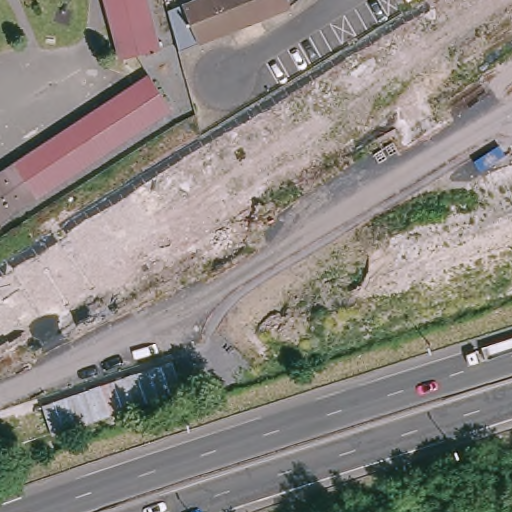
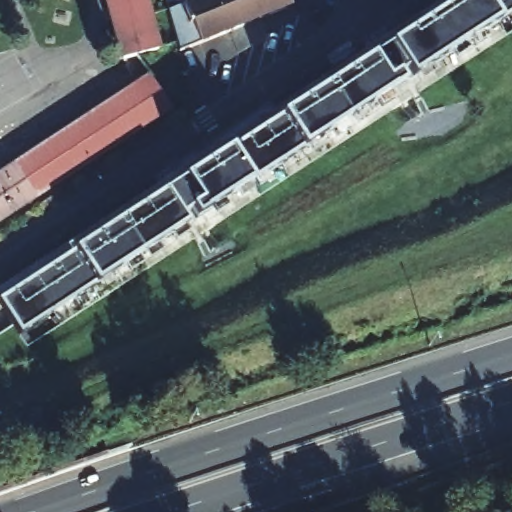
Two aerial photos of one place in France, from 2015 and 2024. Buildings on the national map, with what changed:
new [(25,341),(0,302),(0,289),(443,0),(512,0),(512,26),(25,341)]
unchanged [(121,54),(106,0),(142,0),(154,45),(121,54)]
unchanged [(217,0),(228,26),(208,34),(198,39),(177,47),(166,6),(181,0),(183,0),(217,0)]
unchanged [(217,0),(253,0),(258,13),(228,26),(217,0)]
unchanged [(253,0),(288,0),(258,13),(253,0)]
unchanged [(0,219),(0,177),(142,83),(161,112),(0,219)]
demolished [(505,244),(486,215),(500,207),(497,202),(512,193),(512,240),(505,244)]

